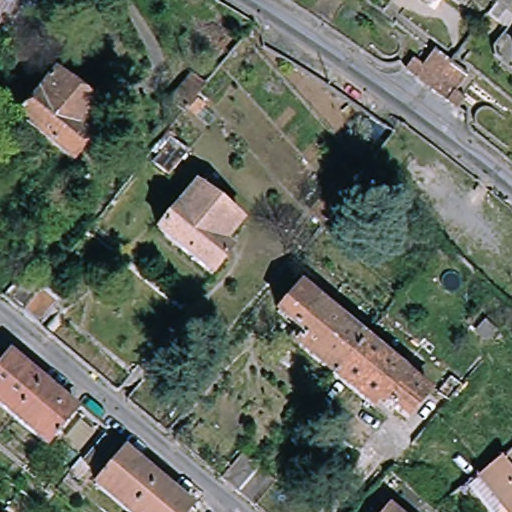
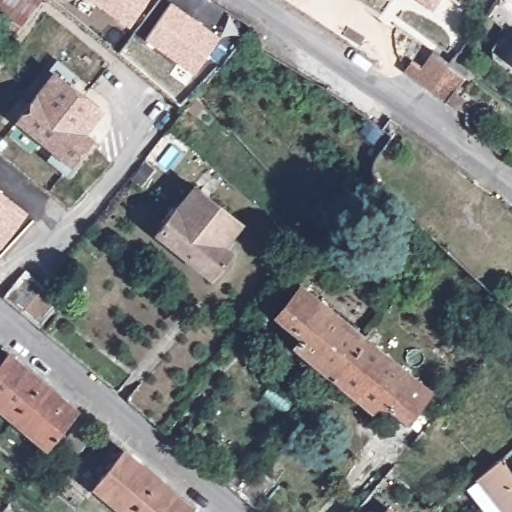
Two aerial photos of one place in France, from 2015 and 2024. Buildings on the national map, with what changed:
new [(129,26),(93,0),(148,0),(129,26)]
unchanged [(319,0),(340,0),(344,3),(326,30),(308,16),(319,0)]
new [(194,73),(145,38),(171,1),(219,36),(194,73)]
unchanged [(503,61),(502,51),(512,38),(512,68),(503,61)]
unchanged [(413,80),(403,72),(411,61),(422,69),(433,54),(449,67),(467,79),(447,106),(430,94),(413,80)]
unchanged [(91,137),(72,161),(18,117),(55,71),(100,107),(83,130),(91,137)]
unchanged [(193,73),(206,83),(183,111),(170,101),(193,73)]
unchanged [(216,275),(162,231),(200,184),(246,221),(228,243),(236,250),(216,275)]
unchanged [(346,198),(324,225),(323,223),(310,213),(333,185),(346,196),(346,198)]
new [(0,248),(0,191),(28,213),(0,248)]
unchanged [(40,325),(21,310),(4,296),(26,269),(43,283),(62,299),(40,325)]
unchanged [(303,336),(309,328),(282,306),(305,278),(371,333),(341,368),(303,336)]
unchanged [(487,339),(477,330),(484,322),(494,331),(487,339)]
unchanged [(371,333),(434,386),(413,413),(386,390),(378,399),(341,368),(371,333)]
unchanged [(48,381),(18,416),(0,401),(0,368),(13,352),(48,381)]
unchanged [(454,392),(444,384),(457,369),(466,377),(454,392)]
unchanged [(81,409),(51,444),(18,416),(48,381),(81,409)]
unchanged [(126,512),(93,484),(123,449),(158,478),(130,512),(126,512)]
unchanged [(221,476),(241,452),(259,466),(276,479),(254,505),(238,491),(221,476)]
unchanged [(497,512),(473,481),(472,480),(495,461),(496,462),(505,474),(512,468),(512,512),(497,512)]
unchanged [(130,512),(158,478),(191,506),(187,512),(130,512)]
unchanged [(383,512),(388,507),(394,512),(383,512)]

